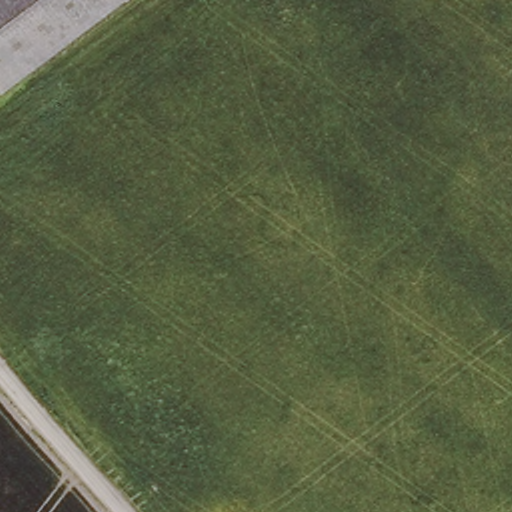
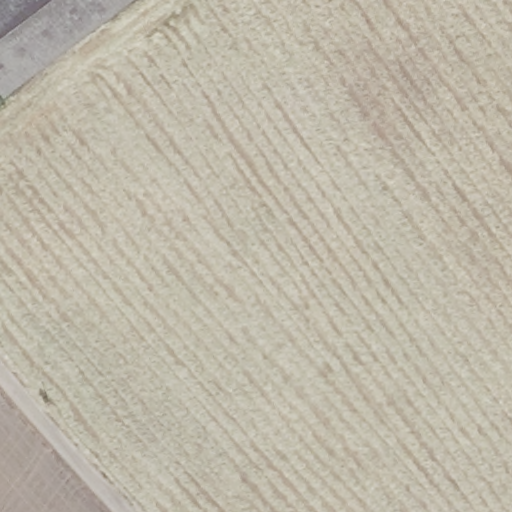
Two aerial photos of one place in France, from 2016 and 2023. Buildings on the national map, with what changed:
unchanged [(0,84),(0,0),(114,0),(0,84)]

